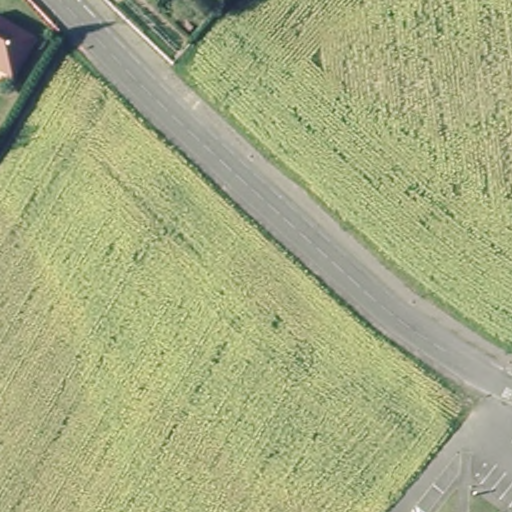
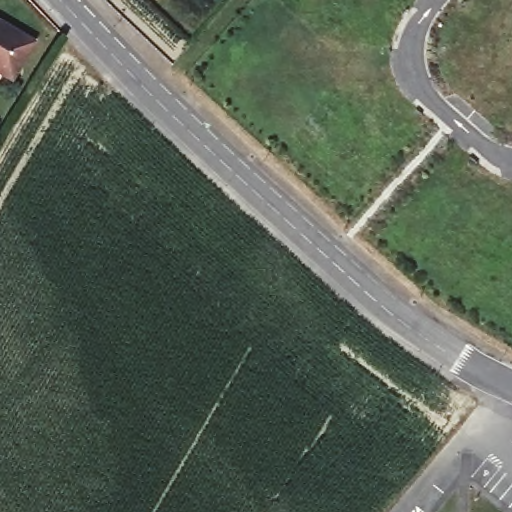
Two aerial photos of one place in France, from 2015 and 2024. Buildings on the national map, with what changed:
unchanged [(15,80),(0,71),(0,20),(37,41),(15,80)]

